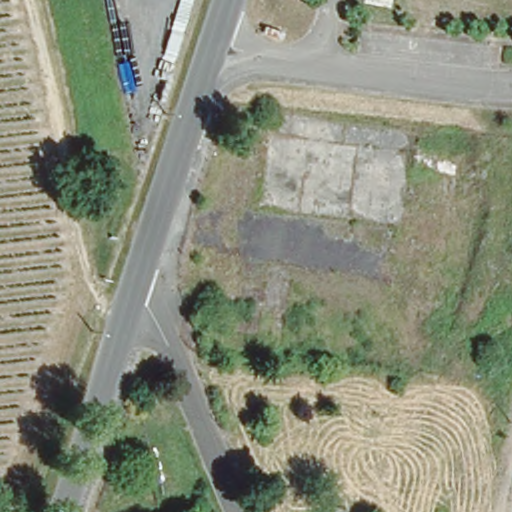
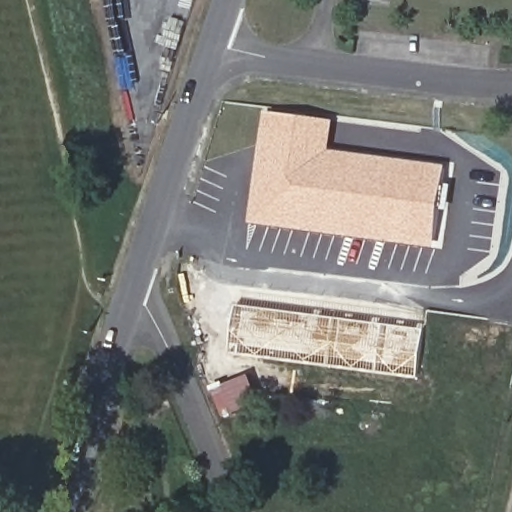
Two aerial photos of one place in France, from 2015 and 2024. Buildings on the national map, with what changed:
new [(329,122),(323,155),(443,168),(435,242),(257,219),(270,115),(329,122)]
new [(238,305),(425,330),(417,380),(230,355),(238,305)]
new [(210,388),(223,383),(224,386),(249,376),(261,406),(224,420),(210,388)]

